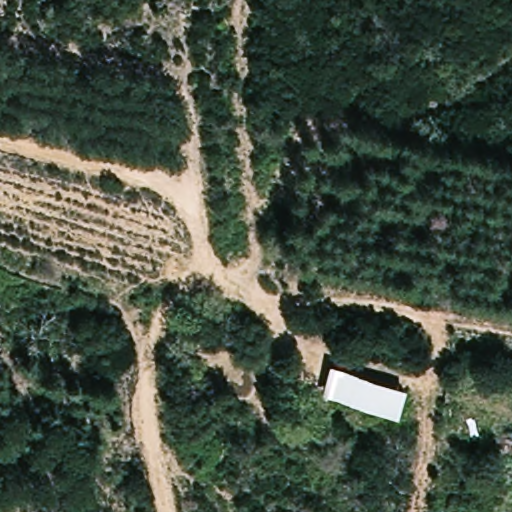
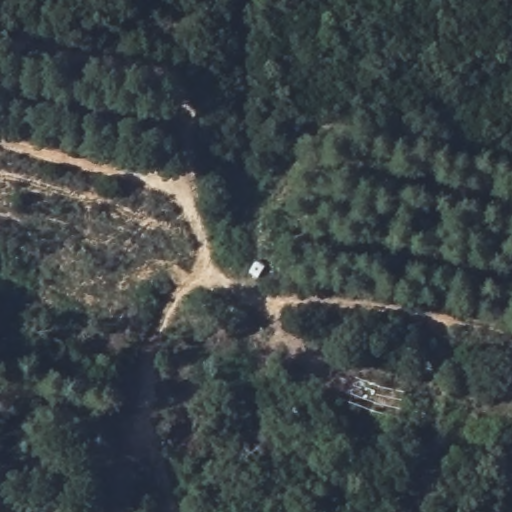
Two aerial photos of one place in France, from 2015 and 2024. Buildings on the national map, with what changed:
unchanged [(382,385),(407,391),(399,420),(374,413),(328,397),(327,398),(323,396),(331,366),(382,385)]

